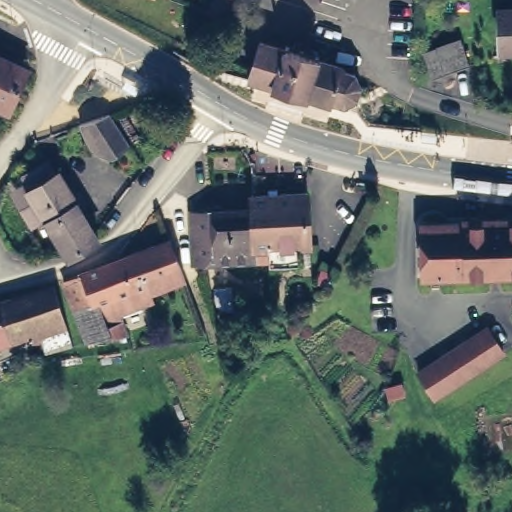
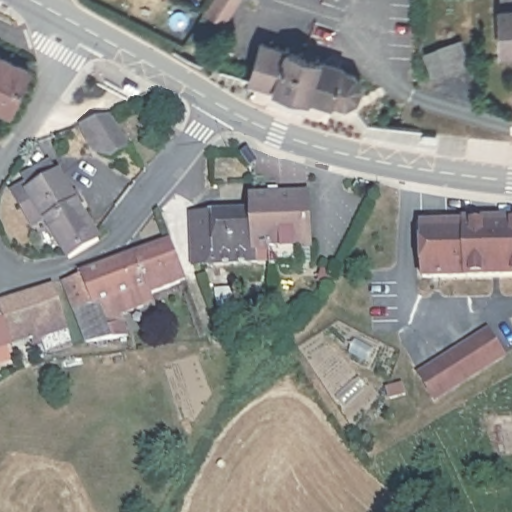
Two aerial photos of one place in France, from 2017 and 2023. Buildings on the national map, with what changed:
unchanged [(238,0),(223,24),(208,15),(217,0),(238,0)]
unchanged [(512,0),(512,1),(497,1),(497,0),(512,0)]
unchanged [(496,51),(495,11),(512,10),(512,51),(496,51)]
unchanged [(461,38),(470,63),(433,76),(424,50),(461,38)]
unchanged [(343,69),(343,71),(355,76),(361,89),(357,102),(344,109),(331,105),(331,107),(306,99),(305,101),(271,91),(272,89),(248,81),(251,71),(260,44),(343,69)]
unchanged [(0,106),(0,56),(34,71),(15,113),(0,106)]
unchanged [(111,157),(95,151),(80,128),(110,116),(129,146),(111,157)]
unchanged [(69,254),(67,252),(45,213),(34,219),(18,192),(28,180),(25,175),(50,161),(57,173),(59,172),(72,193),(77,190),(83,199),(77,202),(95,231),(98,237),(69,254)]
unchanged [(252,262),(251,211),(247,212),(247,196),(265,195),(265,189),(271,189),(272,195),(302,193),(305,247),(294,247),(295,265),(265,266),(265,262),(252,262)]
unchanged [(247,212),(251,211),(252,262),(190,266),(187,215),(247,212)]
unchanged [(420,227),(450,227),(449,219),(464,219),(464,226),(512,225),(512,276),(421,277),(420,227)]
unchanged [(143,307),(121,315),(123,318),(107,323),(109,328),(123,323),(129,337),(88,344),(86,341),(64,285),(82,278),(81,275),(123,258),(150,248),(151,249),(170,241),(186,281),(151,294),(154,303),(143,307)]
unchanged [(331,273),(328,280),(319,277),(321,270),(331,273)]
unchanged [(0,347),(0,305),(55,287),(69,333),(34,345),(32,337),(10,344),(0,347)]
unchanged [(232,289),(233,313),(219,308),(215,291),(232,289)]
unchanged [(417,374),(486,331),(502,356),(433,399),(417,374)]
unchanged [(402,385),(404,396),(389,399),(387,388),(402,385)]

